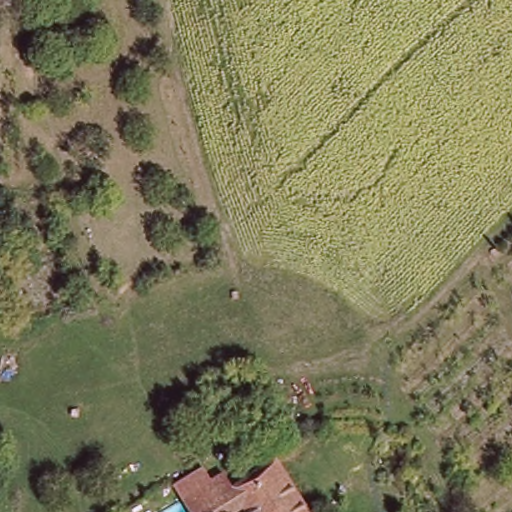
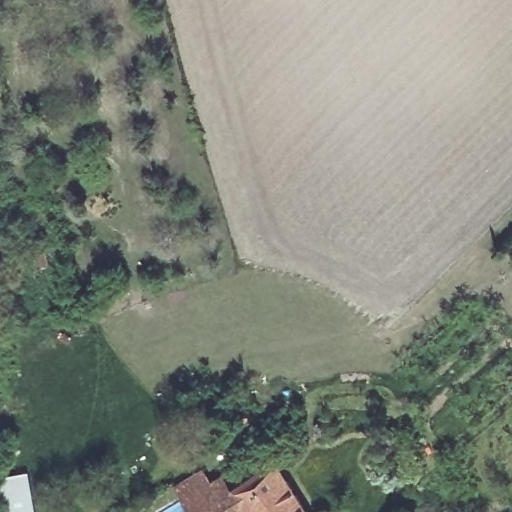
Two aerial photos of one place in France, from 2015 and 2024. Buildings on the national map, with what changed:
unchanged [(187,505),(227,480),(239,495),(267,476),(281,467),(306,512),(254,512),(251,507),(244,512),(191,512),(187,505)]
new [(1,476),(30,472),(36,512),(7,512),(1,476)]

